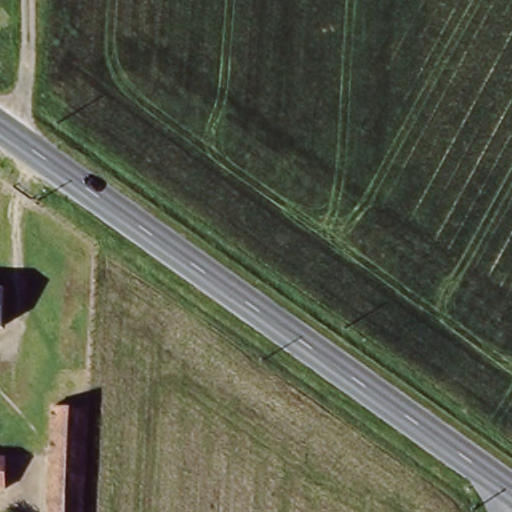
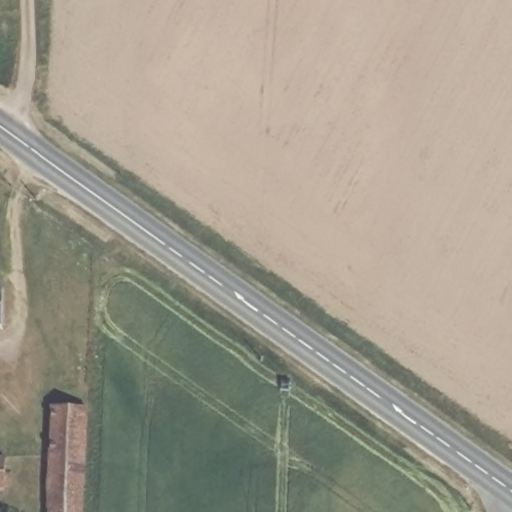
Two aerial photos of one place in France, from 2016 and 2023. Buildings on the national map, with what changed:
unchanged [(1,327),(0,327),(0,288),(1,288),(1,327)]
unchanged [(86,402),(86,434),(45,438),(45,406),(86,402)]
unchanged [(86,434),(86,512),(47,512),(45,438),(86,434)]
unchanged [(9,493),(0,492),(0,455),(10,455),(9,493)]

